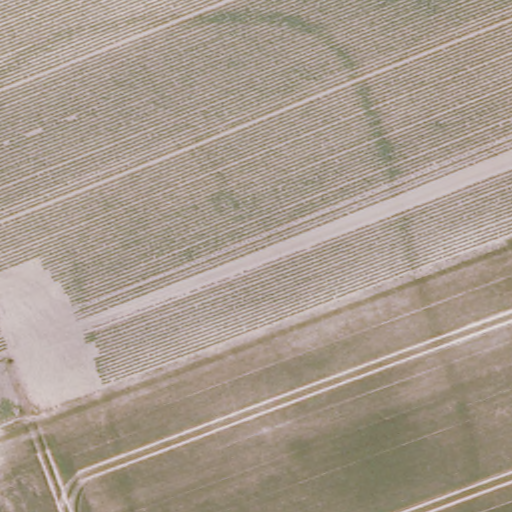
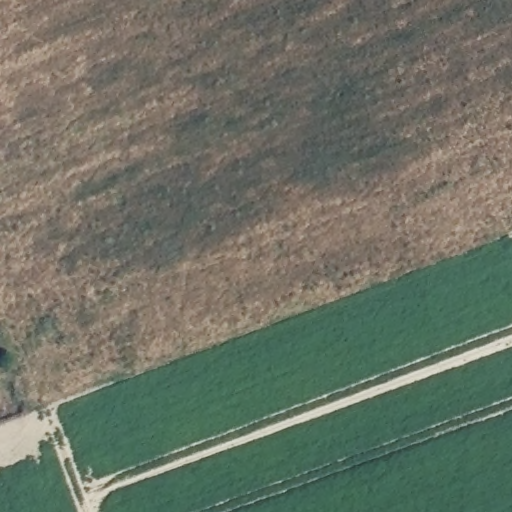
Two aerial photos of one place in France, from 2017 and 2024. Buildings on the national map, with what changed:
[]

